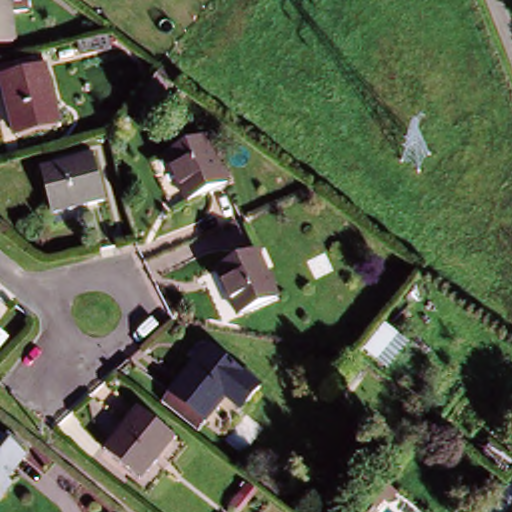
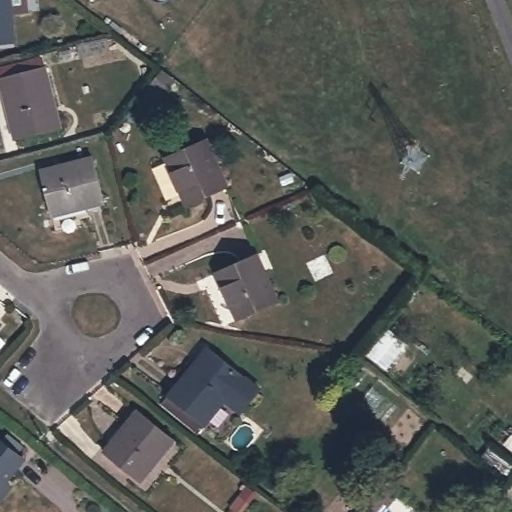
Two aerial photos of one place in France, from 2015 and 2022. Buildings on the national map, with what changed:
unchanged [(24,19),(8,23),(10,47),(0,48),(0,0),(21,0),(24,19)]
unchanged [(12,141),(0,97),(0,82),(42,71),(58,129),(12,141)]
unchanged [(223,191),(184,208),(162,159),(200,143),(223,191)]
unchanged [(86,161),(100,205),(51,220),(36,173),(86,161)]
unchanged [(270,304),(230,321),(210,274),(250,256),(270,304)]
unchanged [(243,378),(203,428),(166,397),(207,348),(243,378)]
unchanged [(372,380),(355,399),(345,391),(362,371),(372,380)]
unchanged [(173,440),(140,480),(102,450),(137,409),(173,440)]
unchanged [(3,479),(10,484),(0,495),(0,438),(22,455),(3,479)]

